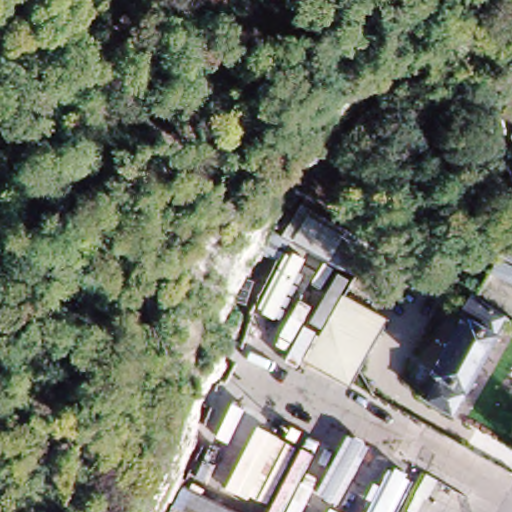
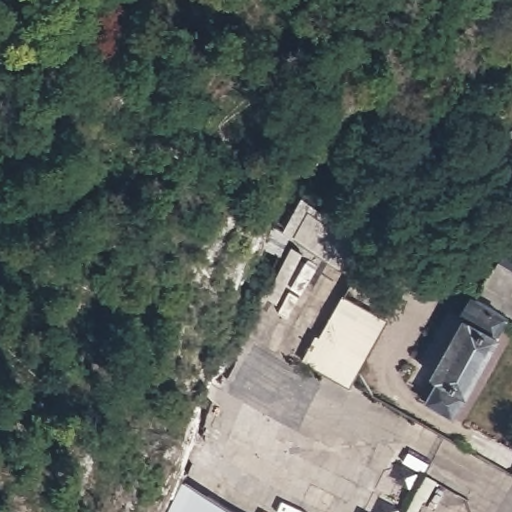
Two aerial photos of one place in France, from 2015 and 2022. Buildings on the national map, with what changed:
unchanged [(311,352),(308,348),(316,336),(320,338),(345,298),(386,322),(365,357),(364,359),(355,372),(352,372),(345,382),(314,362),(310,366),(305,362),(311,352)]
unchanged [(512,320),(512,328),(458,417),(430,401),(431,396),(425,392),(468,318),(463,315),(474,298),(475,299),(512,320)]
unchanged [(183,485),(235,512),(169,512),(183,485)]

